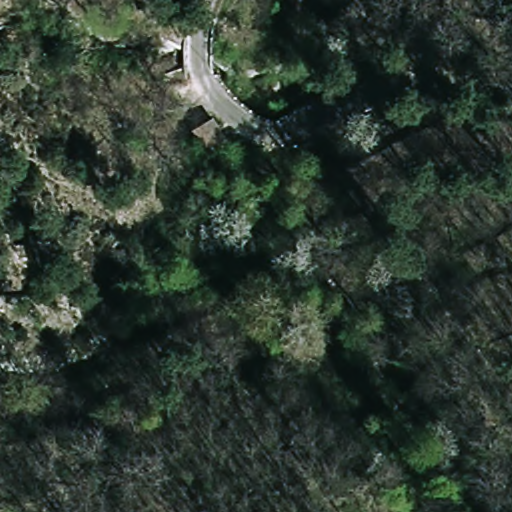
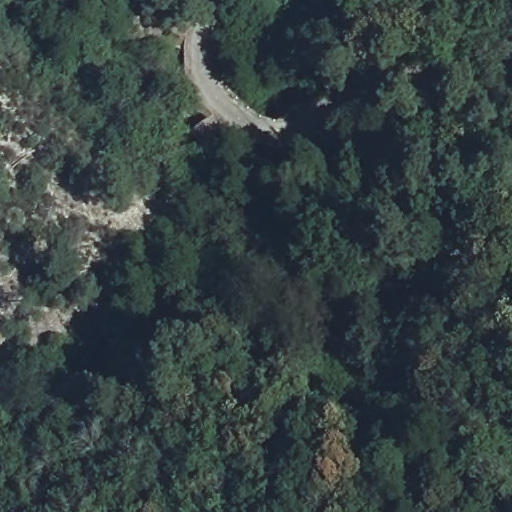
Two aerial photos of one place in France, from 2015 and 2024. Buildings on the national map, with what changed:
unchanged [(238,134),(214,166),(180,141),(203,108),(238,134)]

